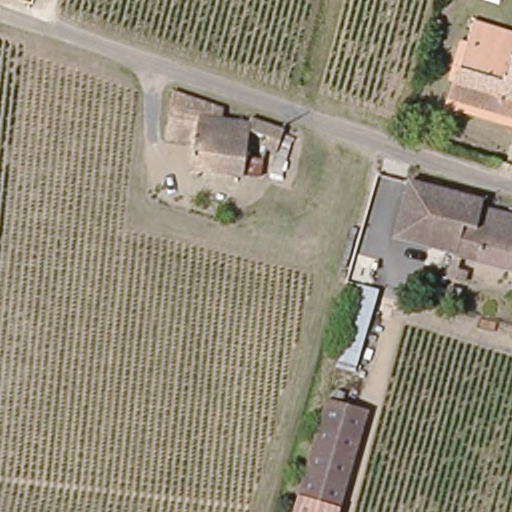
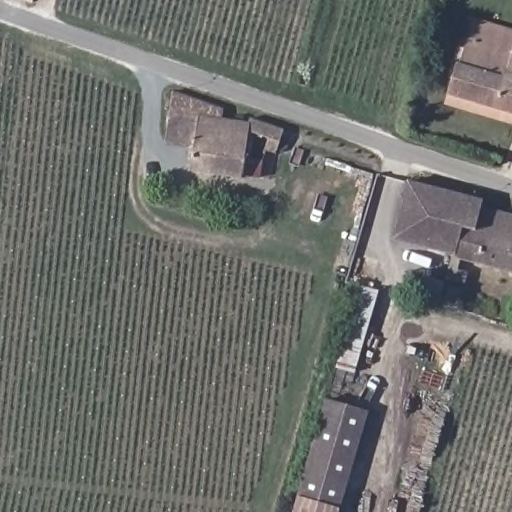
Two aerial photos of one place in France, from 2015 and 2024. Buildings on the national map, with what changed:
unchanged [(476,11),(512,24),(512,101),(453,81),(476,11)]
unchanged [(448,96),(453,81),(512,101),(512,118),(448,96)]
unchanged [(266,171),(264,177),(246,172),(242,186),(185,170),(192,137),(166,126),(176,87),(227,105),(224,115),(250,124),(253,115),(289,127),(281,160),(276,175),(266,171)]
unchanged [(477,259),(469,279),(450,271),(456,251),(408,235),(425,180),(496,202),(494,210),(512,215),(512,270),(477,259)]
unchanged [(322,358),(342,295),(348,275),(373,283),(367,303),(347,366),(322,358)]
unchanged [(370,411),(341,510),(294,493),(324,395),(370,411)]
unchanged [(341,510),(340,512),(288,512),(294,493),(341,510)]

